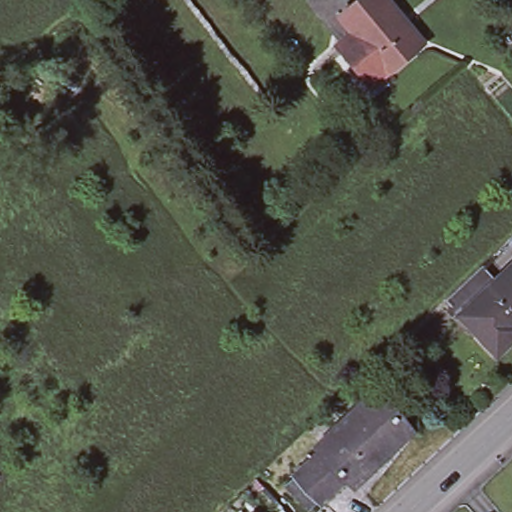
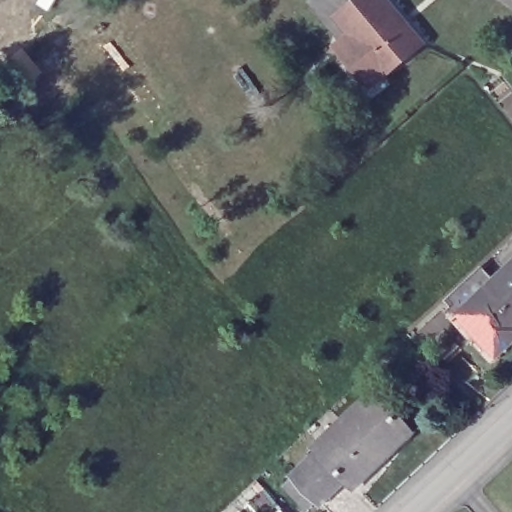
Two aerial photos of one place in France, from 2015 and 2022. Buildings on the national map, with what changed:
unchanged [(339,45),(354,32),(341,16),(361,0),(390,0),(400,12),(399,14),(408,25),(410,23),(424,41),(389,71),(374,85),(361,69),(339,45)]
unchanged [(509,335),(512,338),(512,341),(497,355),(459,315),(446,300),(469,278),(483,293),(512,266),(512,332),(509,335)]
unchanged [(376,388),(409,423),(354,476),(348,468),(321,442),(376,388)]
unchanged [(321,442),(348,468),(323,493),(319,489),(309,499),(287,475),(296,466),(321,442)]

